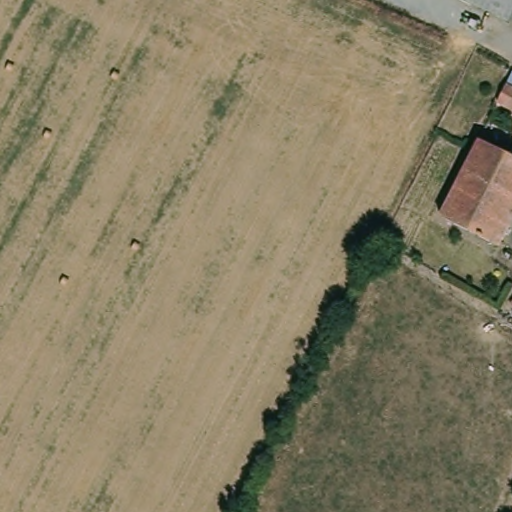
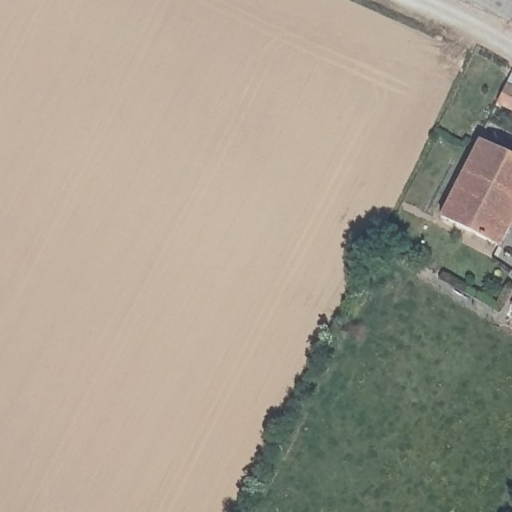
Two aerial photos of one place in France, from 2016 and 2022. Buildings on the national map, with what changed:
unchanged [(512,23),(510,26),(463,0),(512,0),(512,23)]
unchanged [(512,23),(512,26),(510,26),(512,23)]
unchanged [(505,90),(507,91),(512,93),(512,105),(496,97),(501,87),(505,90)]
unchanged [(500,132),(512,138),(512,218),(500,241),(444,212),(462,180),(469,167),(484,137),(495,142),(500,132)]

